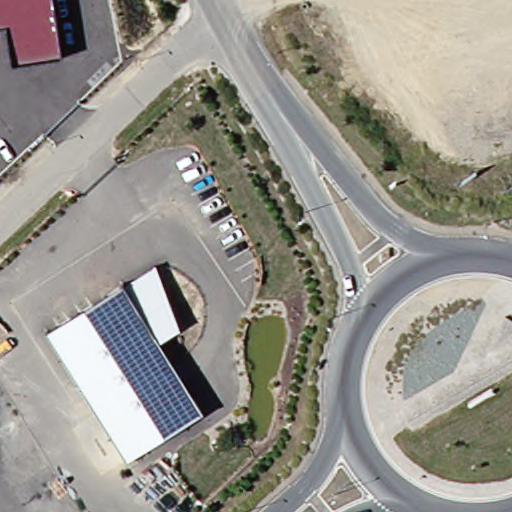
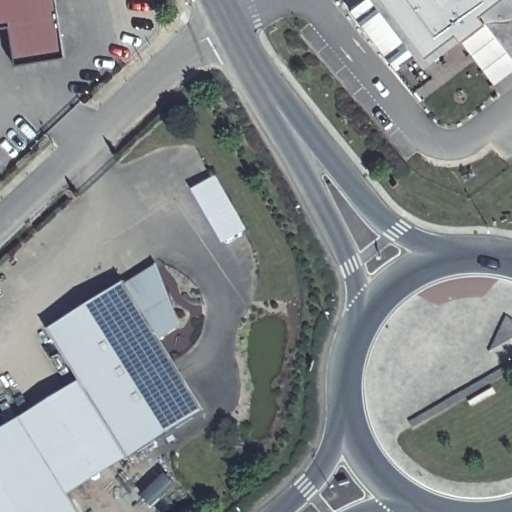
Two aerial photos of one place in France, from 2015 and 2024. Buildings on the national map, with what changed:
new [(0,25),(0,0),(53,0),(62,55),(15,64),(7,24),(0,25)]
new [(484,22),(460,40),(422,67),(370,0),(512,0),(512,60),(484,22)]
new [(247,231),(222,245),(191,190),(215,176),(247,231)]
unchanged [(79,381),(45,331),(122,282),(125,286),(156,266),(180,323),(160,337),(205,408),(129,457),(79,381)]
new [(69,496),(79,512),(0,512),(0,430),(79,381),(129,457),(69,496)]

